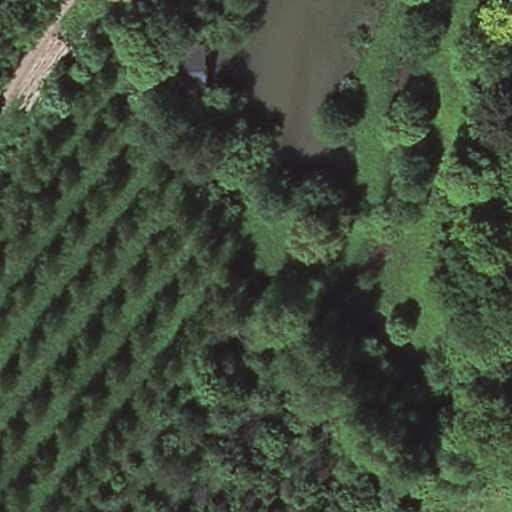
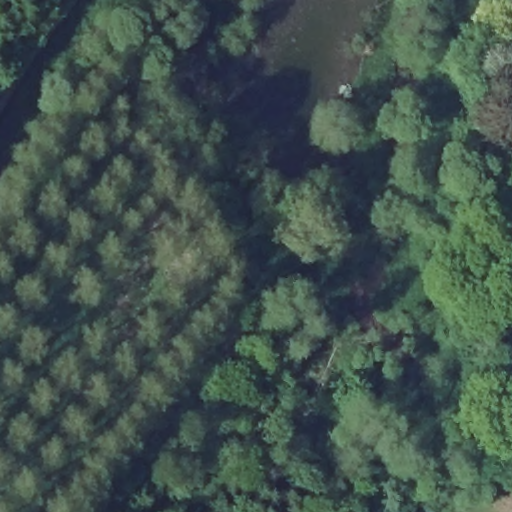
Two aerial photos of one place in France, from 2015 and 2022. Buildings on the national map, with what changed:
unchanged [(199,53),(205,53),(204,95),(162,95),(162,53),(199,53)]

